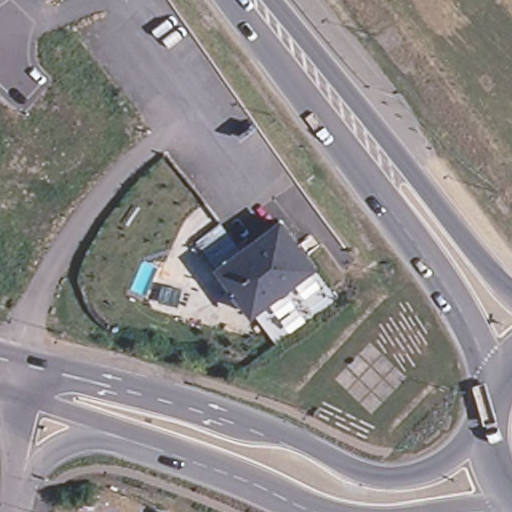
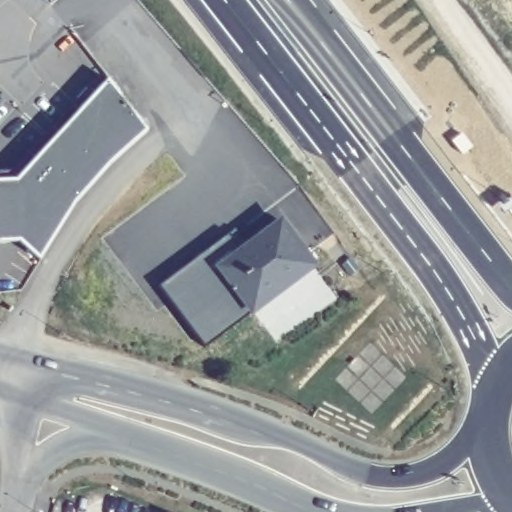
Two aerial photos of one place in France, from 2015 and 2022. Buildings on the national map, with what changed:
new [(17,181),(110,80),(147,130),(110,163),(74,203),(40,260),(20,240),(0,242),(0,182),(17,181)]
unchanged [(317,266),(253,310),(222,267),(284,221),(317,266)]

